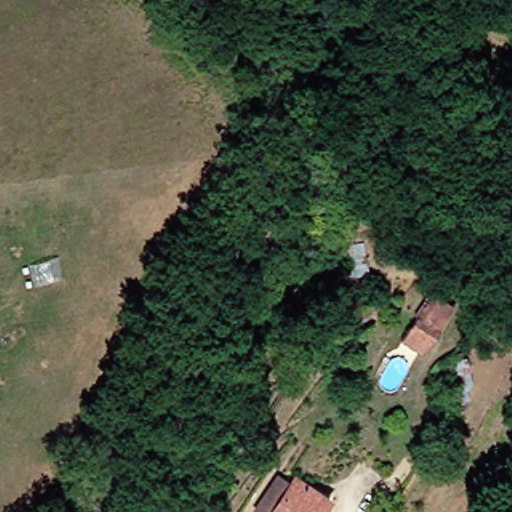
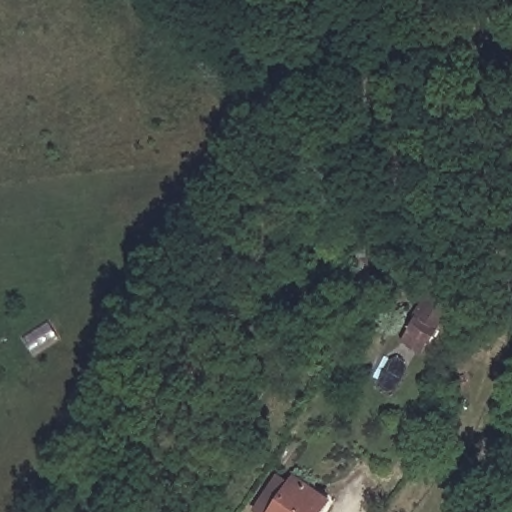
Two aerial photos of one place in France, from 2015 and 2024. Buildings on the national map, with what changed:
unchanged [(485,257),(487,231),(502,234),(498,259),(485,257)]
unchanged [(355,267),(354,253),(369,252),(367,267),(355,267)]
unchanged [(406,335),(430,300),(447,312),(424,347),(406,335)]
unchanged [(318,499),(309,512),(263,512),(282,478),(318,499)]

